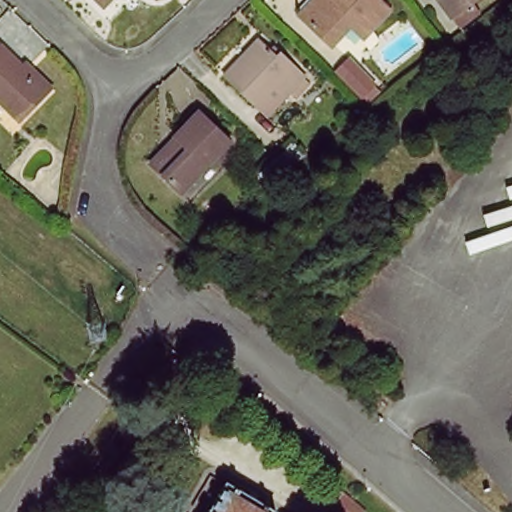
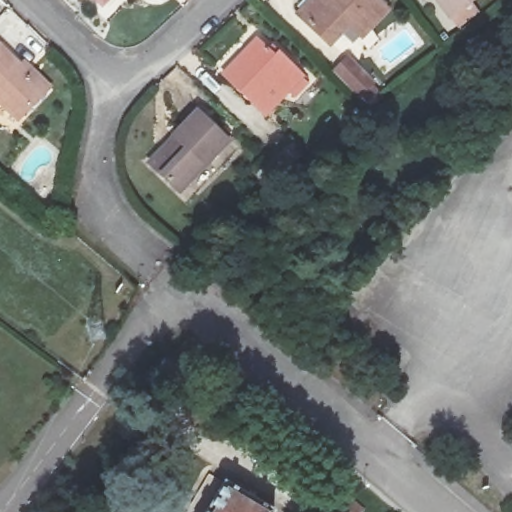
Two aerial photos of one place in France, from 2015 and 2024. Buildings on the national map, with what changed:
unchanged [(92,0),(103,0),(98,6),(92,0)]
unchanged [(325,45),(300,17),(318,0),(378,0),(387,10),(355,37),(344,27),(325,45)]
unchanged [(441,0),(472,0),(453,15),(441,0)]
unchanged [(251,100),(224,71),(258,37),(276,57),(281,51),(303,72),(310,82),(293,97),(286,89),(283,91),(262,111),(251,100)]
unchanged [(26,74),(31,68),(55,92),(49,97),(22,125),(0,104),(0,49),(26,74)]
unchanged [(328,72),(340,60),(365,84),(352,97),(328,72)]
unchanged [(151,152),(164,141),(170,146),(184,132),(180,127),(202,107),(233,139),(183,187),(151,152)]
unchanged [(229,486),(269,512),(211,512),(229,486)]
unchanged [(362,511),(361,512),(331,512),(343,494),(362,511)]

